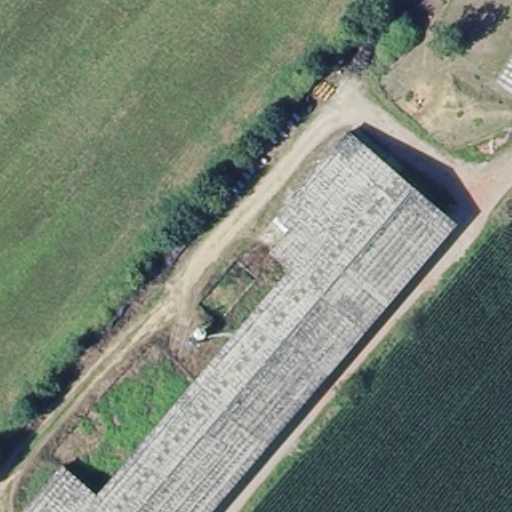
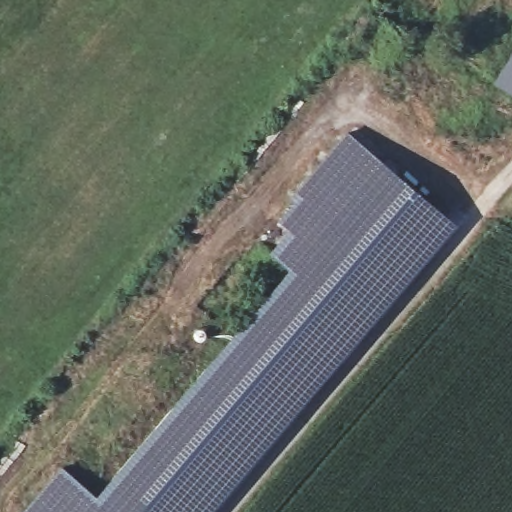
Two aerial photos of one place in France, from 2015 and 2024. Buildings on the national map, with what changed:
unchanged [(496,82),(512,56),(512,92),(496,82)]
unchanged [(305,274),(286,258),(306,235),(294,225),(310,208),(306,204),(363,138),(397,167),(305,274)]
unchanged [(460,220),(212,512),(44,512),(77,473),(112,502),(305,274),(397,167),(460,220)]

